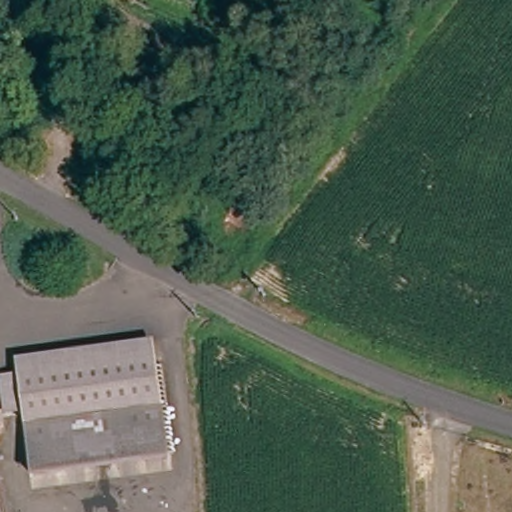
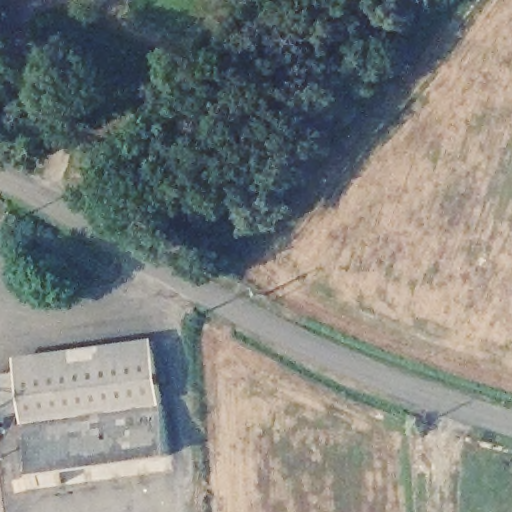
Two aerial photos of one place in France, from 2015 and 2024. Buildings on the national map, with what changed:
unchanged [(19,355),(156,337),(159,353),(21,372),(19,355)]
unchanged [(34,473),(25,406),(10,408),(8,373),(21,372),(159,353),(169,423),(173,454),(164,455),(34,473)]

